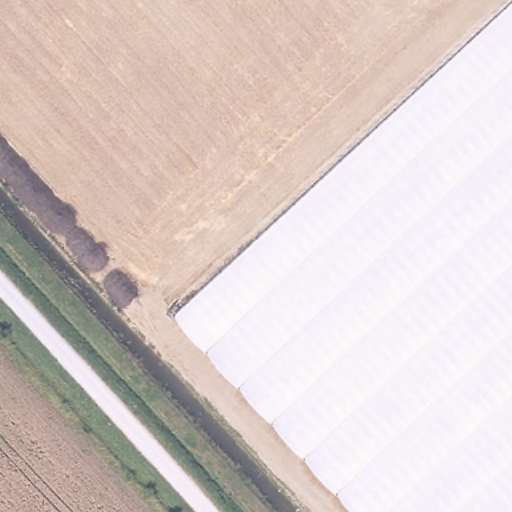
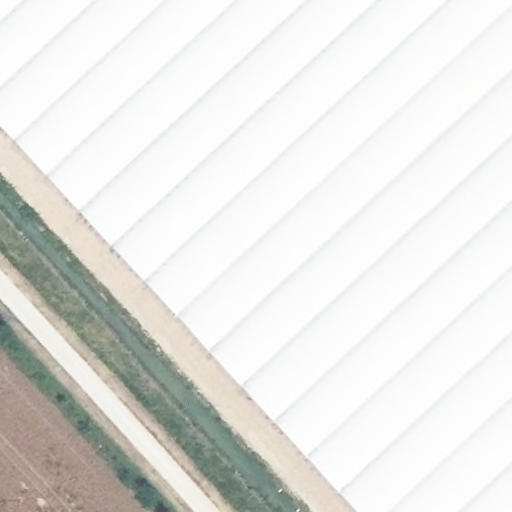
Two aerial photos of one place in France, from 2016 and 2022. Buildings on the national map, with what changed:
new [(0,125),(0,0),(512,0),(512,1),(174,313),(0,125)]
unchanged [(512,1),(512,512),(355,512),(174,313),(512,1)]

